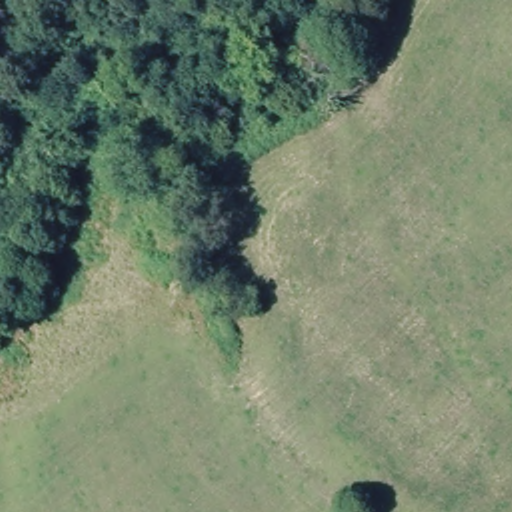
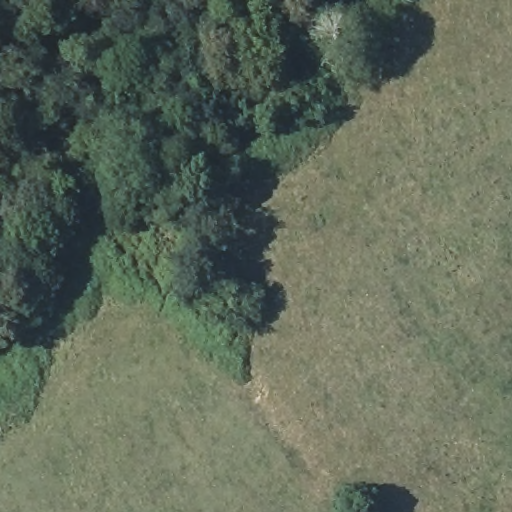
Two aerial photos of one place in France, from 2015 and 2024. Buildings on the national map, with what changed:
unchanged [(226,0),(228,2),(238,1),(245,5),(250,15),(247,26),(237,32),(228,31),(219,23),(220,14),(210,2),(212,0),(226,0)]

